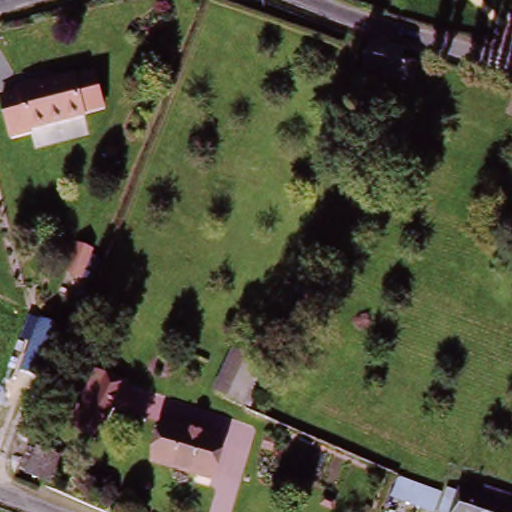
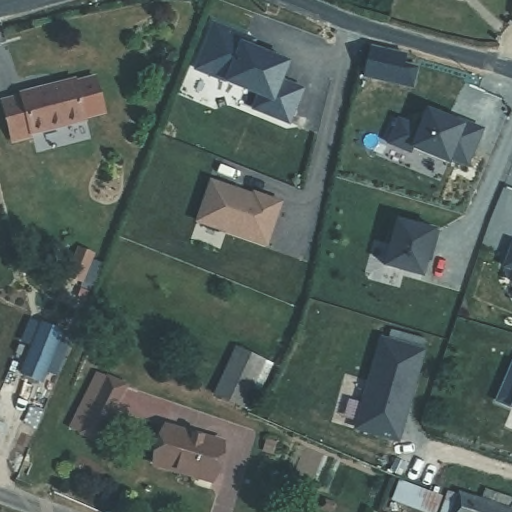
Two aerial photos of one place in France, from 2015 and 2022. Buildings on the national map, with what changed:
new [(258,36),(251,45),(291,61),(286,77),(305,87),(291,124),(251,109),(254,95),(224,80),(192,70),(211,19),(258,36)]
unchanged [(369,75),(374,48),(408,54),(407,64),(417,65),(412,89),(369,75)]
unchanged [(1,101),(21,95),(21,92),(93,71),(103,105),(32,131),(31,128),(11,135),(1,101)]
new [(419,120),(425,106),(464,120),(466,120),(483,128),(467,165),(452,159),(449,165),(409,150),(386,144),(396,116),(419,120)]
new [(250,191),(251,189),(283,200),(266,245),(194,221),(209,177),(250,191)]
new [(438,229),(425,277),(384,265),(395,218),(438,229)]
new [(508,298),(511,288),(508,281),(496,277),(510,242),(512,242),(512,300),(508,298)]
new [(78,250),(94,255),(91,264),(101,267),(94,288),(68,280),(74,262),(78,250)]
unchanged [(47,340),(53,325),(71,333),(64,348),(48,385),(31,377),(47,340)]
new [(425,347),(397,441),(353,427),(379,336),(425,347)]
unchanged [(225,393),(240,350),(263,358),(248,401),(225,393)]
new [(510,408),(511,402),(494,399),(512,360),(512,409),(510,408)]
unchanged [(97,370),(125,384),(100,440),(71,427),(97,370)]
unchanged [(215,484),(160,465),(174,426),(228,445),(215,484)]
demolished [(53,495),(40,491),(27,486),(37,458),(53,465),(62,469),(53,495)]
new [(484,486),(498,492),(491,507),(475,501),(470,512),(438,512),(446,489),(481,495),(484,486)]
unchanged [(491,507),(499,488),(512,494),(512,512),(470,512),(475,501),(491,507)]

